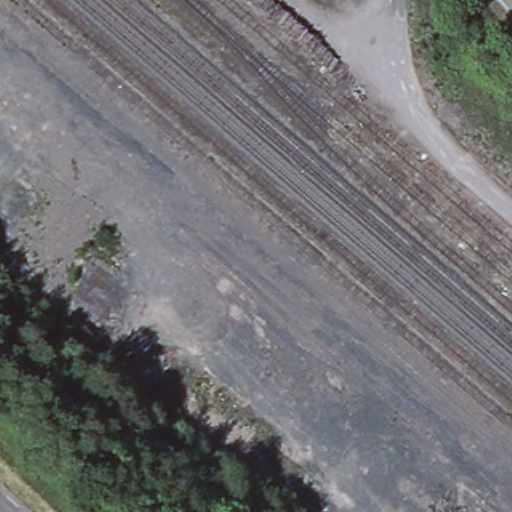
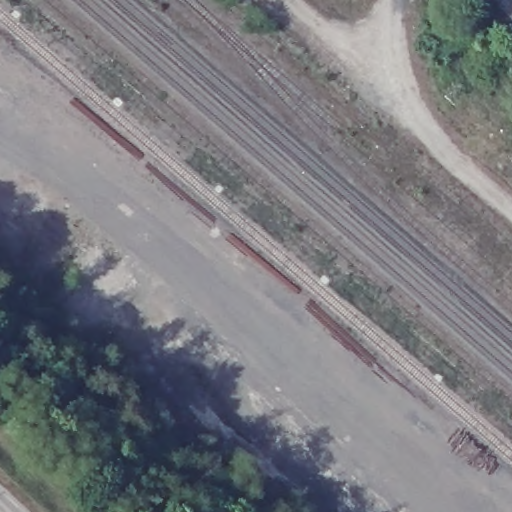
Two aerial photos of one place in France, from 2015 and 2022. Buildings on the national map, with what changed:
[]

